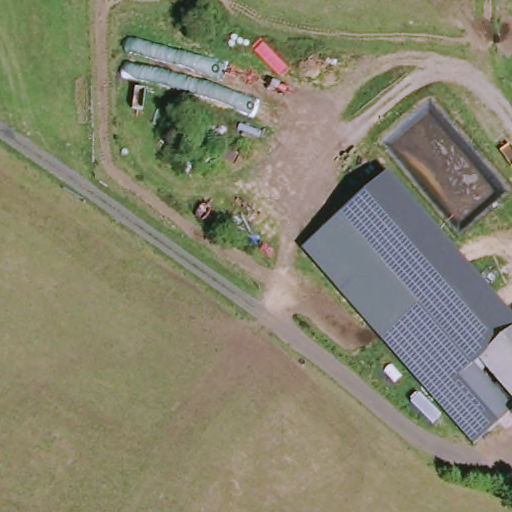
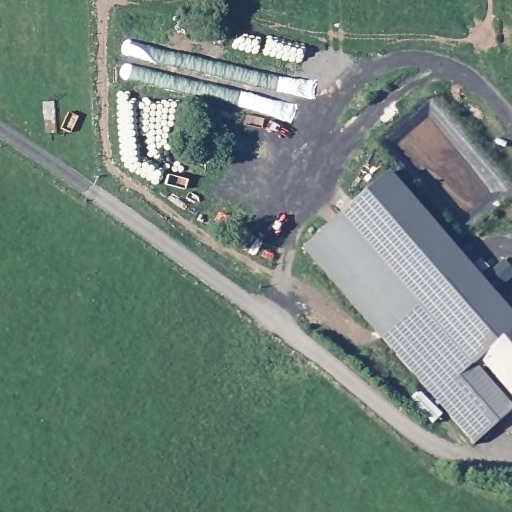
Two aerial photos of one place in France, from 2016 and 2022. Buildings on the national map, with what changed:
unchanged [(509,394),(502,399),(512,408),(512,421),(483,445),(388,343),(303,246),(392,176),(512,312),(512,398),(509,394)]

